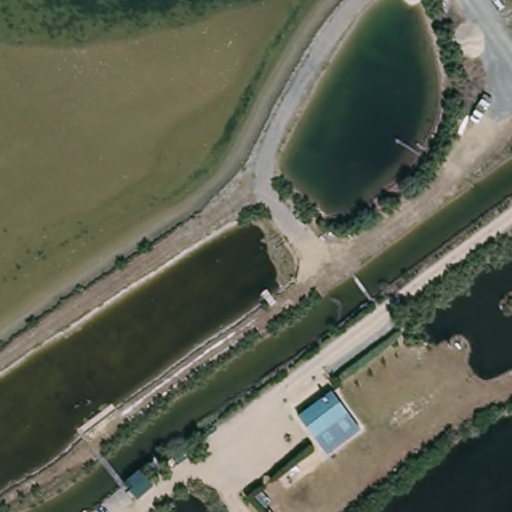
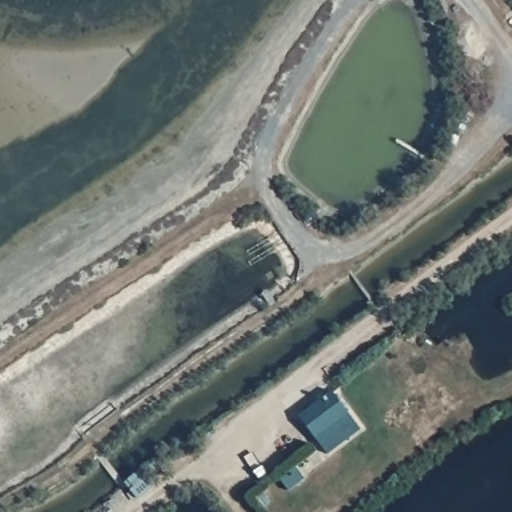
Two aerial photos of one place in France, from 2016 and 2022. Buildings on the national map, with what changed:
unchanged [(335,391),(353,412),(319,438),(302,418),(335,391)]

